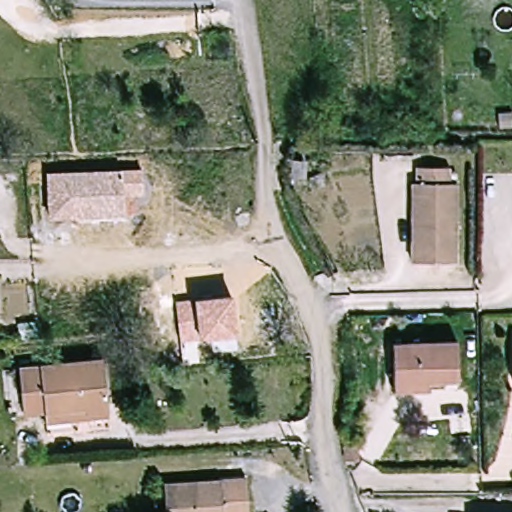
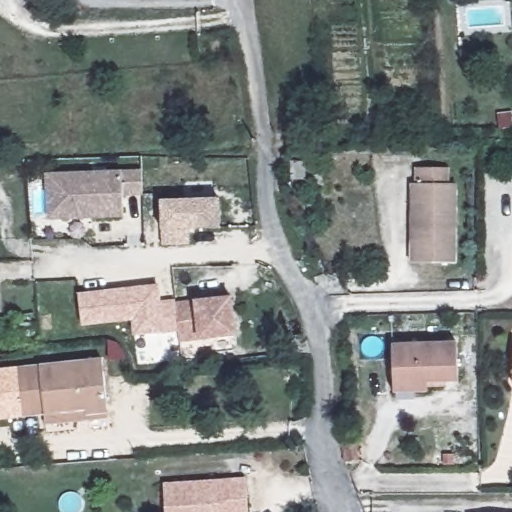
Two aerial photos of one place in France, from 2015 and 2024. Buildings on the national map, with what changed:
unchanged [(143,197),(123,198),(124,219),(49,220),(47,174),(143,170),(143,197)]
unchanged [(449,170),(450,185),(457,185),(455,263),(411,262),(412,216),(412,185),(417,185),(417,170),(449,170)]
new [(162,230),(161,199),(220,199),(222,229),(191,229),(191,245),(163,246),(162,230)]
new [(161,302),(176,300),(176,302),(179,331),(164,333),(133,335),(131,320),(82,327),(78,293),(159,284),(161,302)]
unchanged [(235,294),(238,337),(180,343),(176,302),(235,294)]
new [(304,334),(311,356),(295,357),(293,335),(304,334)]
unchanged [(395,392),(395,382),(395,344),(455,343),(455,382),(424,382),(424,393),(395,392)]
unchanged [(45,427),(44,414),(24,415),(19,368),(101,361),(107,414),(107,421),(45,427)]
new [(25,417),(0,420),(0,370),(19,368),(24,415),(25,417)]
unchanged [(357,446),(359,461),(347,463),(344,448),(357,446)]
unchanged [(170,481),(250,475),(252,512),(172,512),(170,481)]

